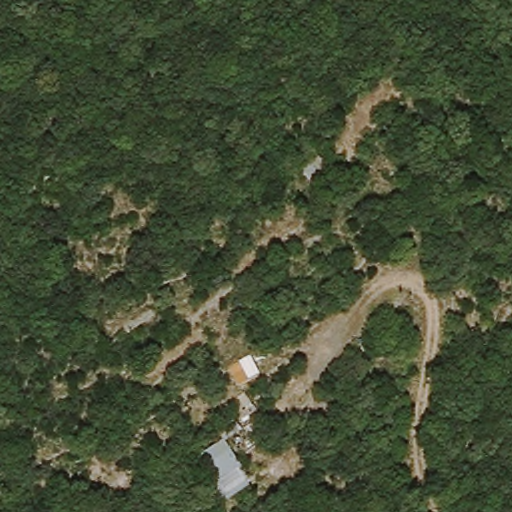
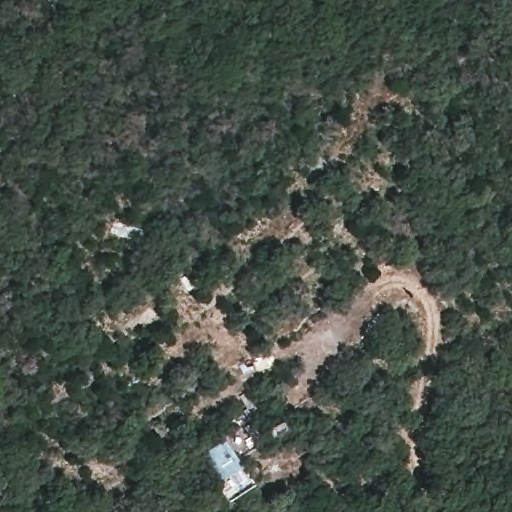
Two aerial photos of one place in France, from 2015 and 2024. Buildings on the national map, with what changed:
unchanged [(308,190),(314,167),(332,171),(327,195),(308,190)]

